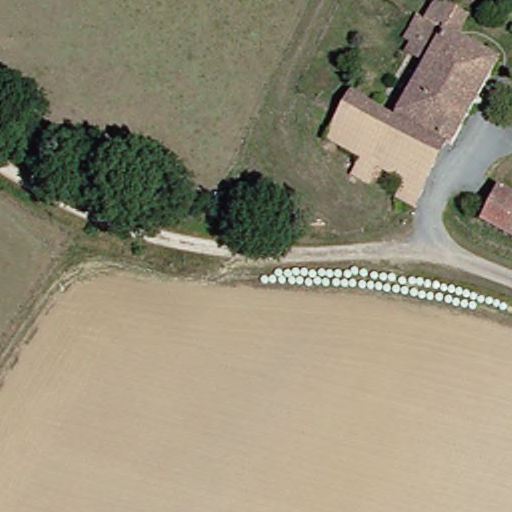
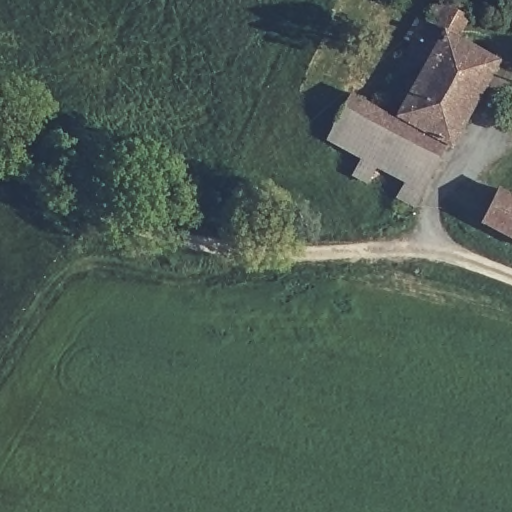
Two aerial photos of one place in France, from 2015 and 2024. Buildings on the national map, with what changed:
unchanged [(428,21),(438,3),(460,15),(452,34),(503,63),(458,149),(449,145),(422,191),(430,196),(421,215),(402,205),(412,186),(370,163),(358,180),(350,174),(357,156),(327,141),(353,95),(373,107),(397,63),(413,73),(420,60),(410,55),(428,21)]
unchanged [(512,236),(487,222),(504,191),(512,195),(512,236)]

